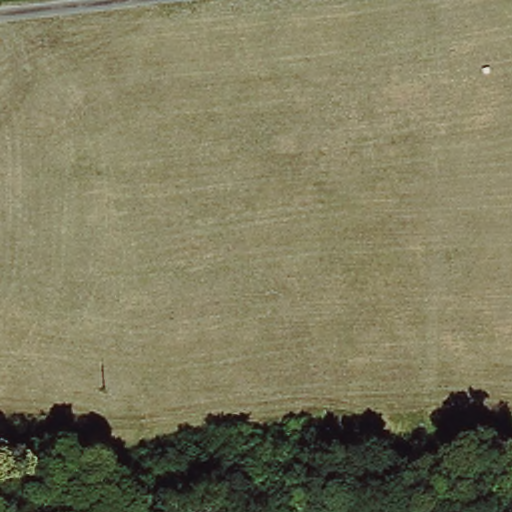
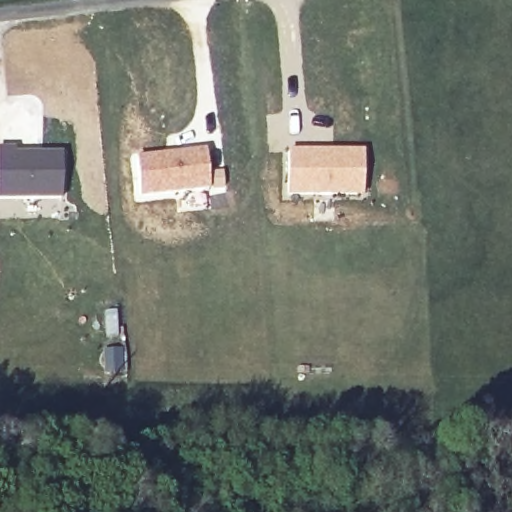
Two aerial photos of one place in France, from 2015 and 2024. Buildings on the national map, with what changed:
new [(220,146),(225,189),(136,199),(131,155),(220,146)]
new [(62,153),(60,203),(0,201),(0,148),(62,153)]
new [(284,150),(364,151),(363,198),(283,199),(284,150)]
unchanged [(124,509),(121,492),(252,489),(252,478),(319,476),(321,512),(172,512),(172,508),(124,509)]

